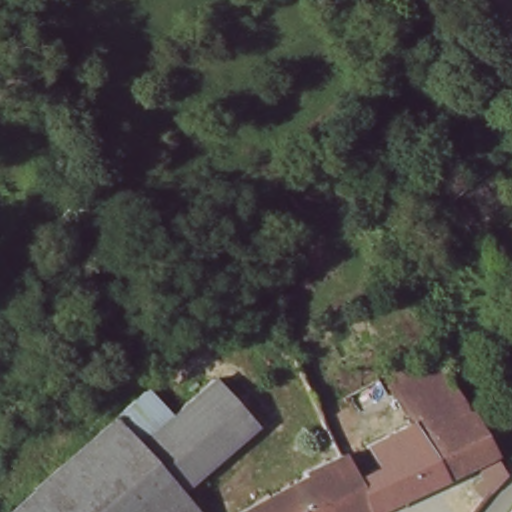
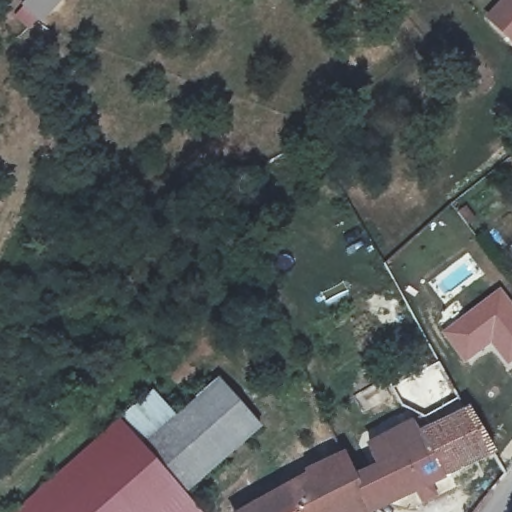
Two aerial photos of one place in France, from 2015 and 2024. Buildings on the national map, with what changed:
new [(484,15),(499,0),(512,0),(512,44),(484,15)]
new [(500,286),(512,302),(512,362),(507,366),(490,346),(464,364),(439,332),(500,286)]
unchanged [(176,414),(214,381),(257,427),(186,495),(141,447),(176,414)]
unchanged [(412,405),(455,383),(462,396),(469,408),(425,433),(420,420),(412,405)]
unchanged [(154,388),(176,414),(141,447),(116,421),(154,388)]
unchanged [(384,466),(393,461),(385,438),(420,420),(425,433),(469,408),(509,478),(511,482),(490,510),(476,494),(487,476),(478,460),(400,501),(384,466)]
unchanged [(16,512),(116,421),(141,447),(186,495),(201,512),(16,512)]
unchanged [(301,479),(348,454),(354,468),(358,479),(371,512),(255,512),(306,487),(301,479)]
unchanged [(400,501),(380,512),(371,512),(358,479),(384,466),(400,501)]

